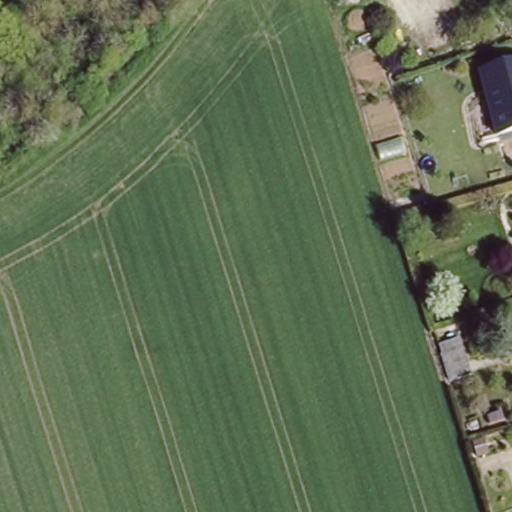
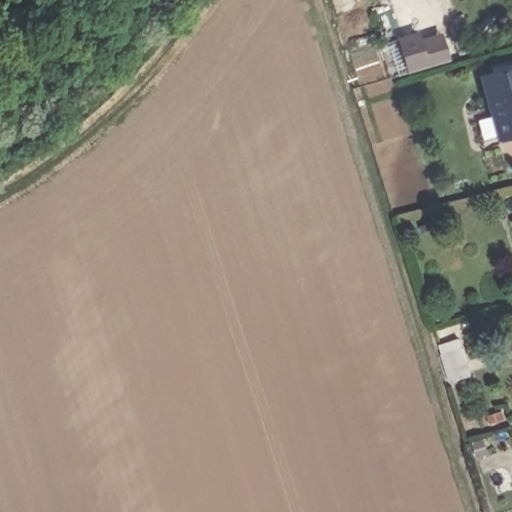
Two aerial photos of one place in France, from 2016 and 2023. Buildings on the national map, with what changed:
new [(416,30),(419,38),(440,32),(448,57),(427,64),(409,70),(397,36),(416,30)]
unchanged [(477,76),(512,66),(512,135),(495,140),(477,76)]

